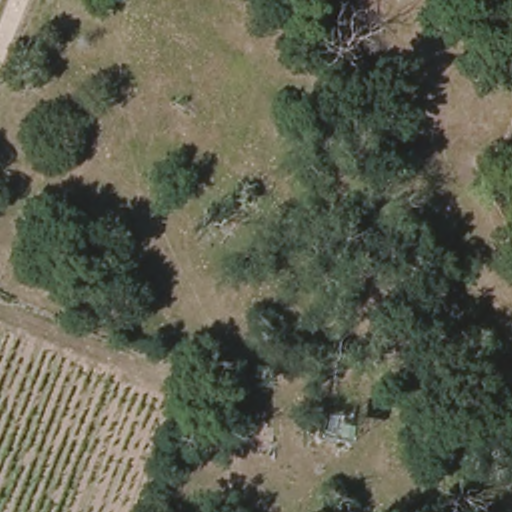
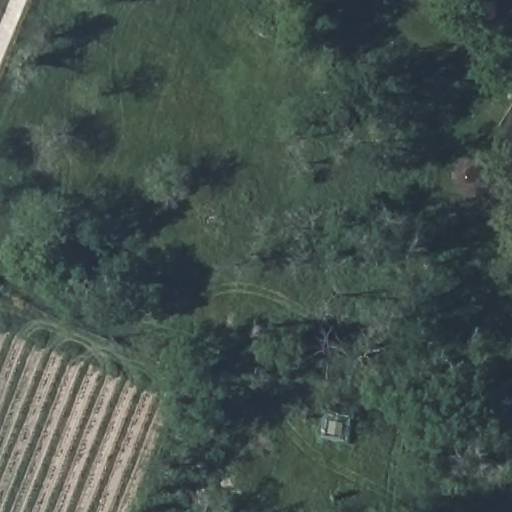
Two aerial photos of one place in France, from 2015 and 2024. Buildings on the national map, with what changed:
[]

